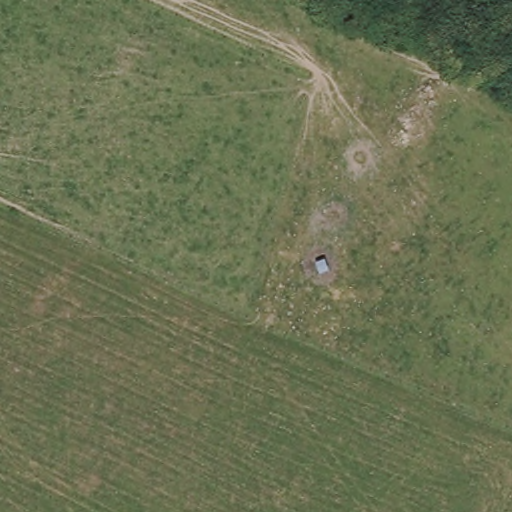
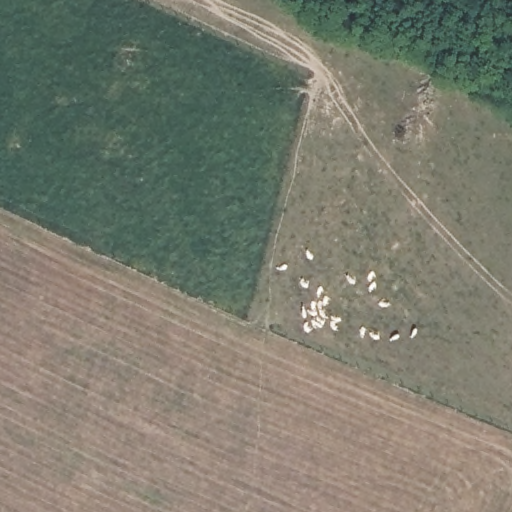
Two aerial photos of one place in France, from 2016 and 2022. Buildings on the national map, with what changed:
[]

